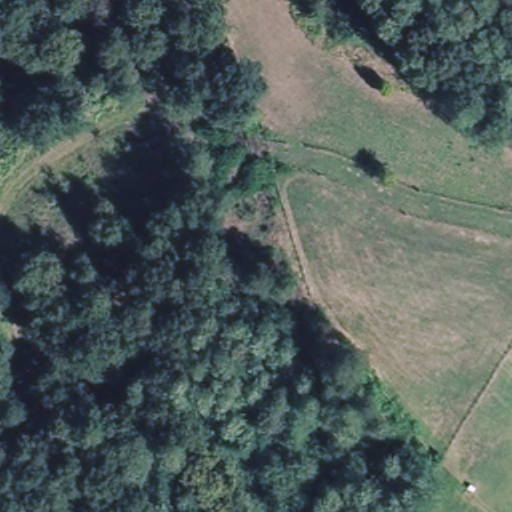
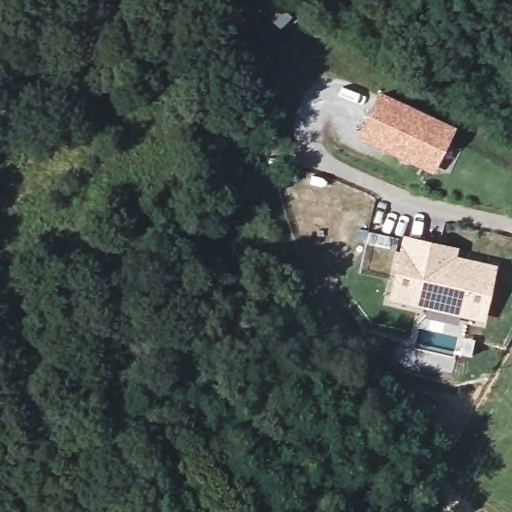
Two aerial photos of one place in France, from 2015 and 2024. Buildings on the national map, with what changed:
new [(353,136),(376,90),(454,127),(432,174),(353,136)]
new [(387,300),(402,234),(458,246),(456,256),(497,265),(484,322),(387,300)]

